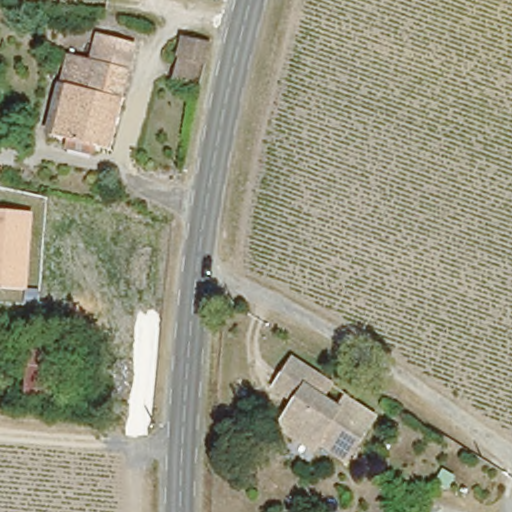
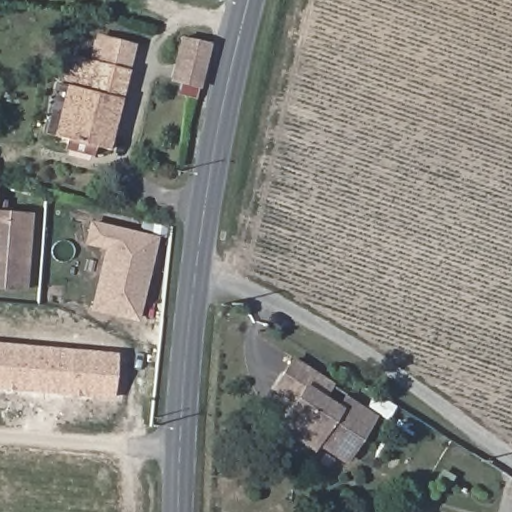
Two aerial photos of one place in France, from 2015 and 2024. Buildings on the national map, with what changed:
unchanged [(183,71),(171,69),(179,35),(213,44),(200,93),(179,86),(183,71)]
unchanged [(89,56),(91,45),(103,48),(128,52),(126,61),(121,93),(66,81),(71,53),(89,56)]
unchanged [(66,81),(121,93),(107,160),(57,149),(66,81)]
unchanged [(0,183),(1,183),(0,196),(0,183)]
unchanged [(28,290),(0,289),(0,209),(34,212),(28,290)]
new [(107,248),(86,243),(91,219),(161,235),(141,321),(90,309),(107,248)]
demolished [(64,398),(27,394),(34,332),(68,334),(64,398)]
new [(0,344),(119,354),(115,399),(0,389),(0,344)]
unchanged [(347,464),(319,448),(315,454),(275,427),(291,402),(271,389),(292,356),(335,382),(324,398),(337,406),(344,395),(379,416),(347,464)]

